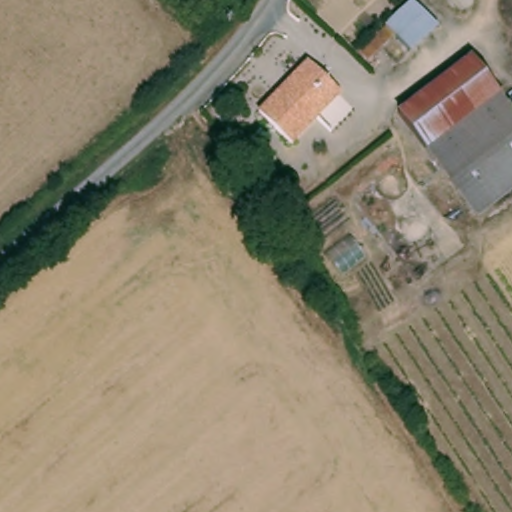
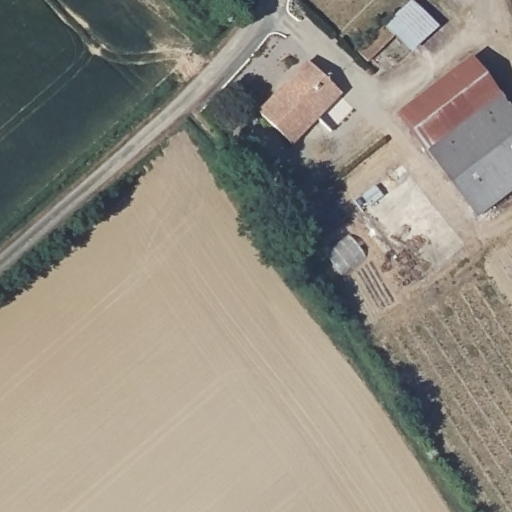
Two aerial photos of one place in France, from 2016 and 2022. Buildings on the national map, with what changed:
unchanged [(408,0),(433,29),(405,53),(378,27),(407,0),(408,0)]
unchanged [(377,28),(389,41),(360,66),(348,52),(377,28)]
unchanged [(459,60),(512,122),(512,189),(476,219),(451,191),(390,121),(459,60)]
unchanged [(334,95),(283,147),(252,115),(302,63),(334,95)]

